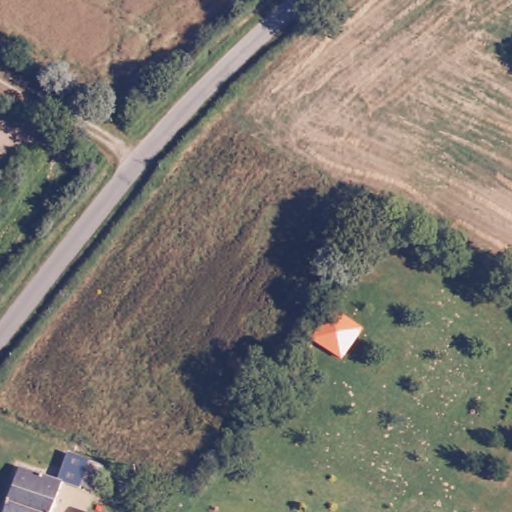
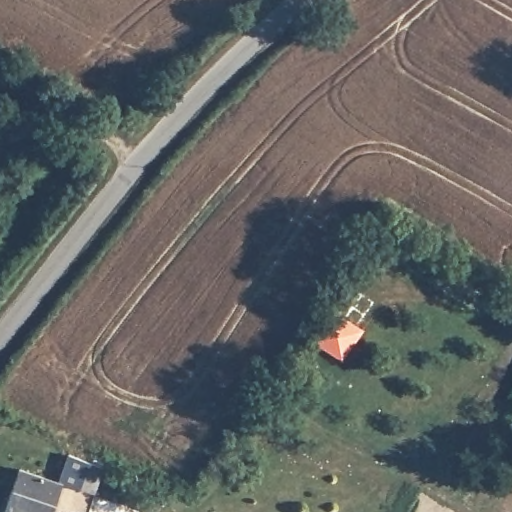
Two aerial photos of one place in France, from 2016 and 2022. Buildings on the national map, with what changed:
unchanged [(311,342),(331,311),(363,328),(342,362),(311,342)]
unchanged [(57,483),(47,512),(1,512),(16,469),(57,483)]
unchanged [(93,504),(108,506),(107,512),(91,512),(93,504)]

